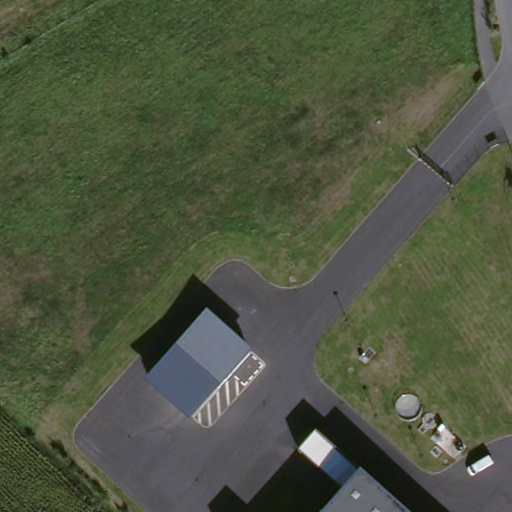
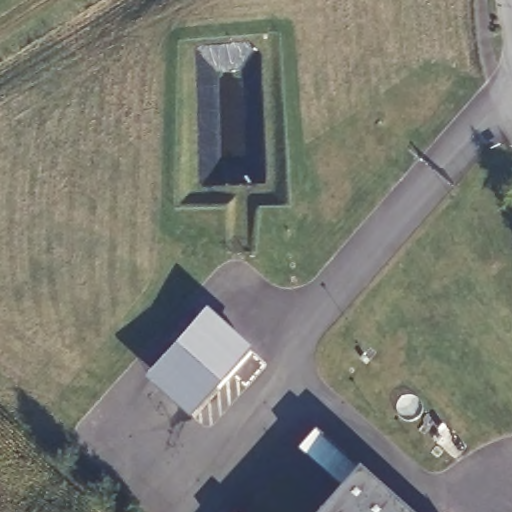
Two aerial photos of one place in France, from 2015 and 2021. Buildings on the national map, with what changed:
unchanged [(211,309),(259,348),(195,416),(150,378),(211,309)]
unchanged [(361,472),(408,512),(326,512),(361,472)]

